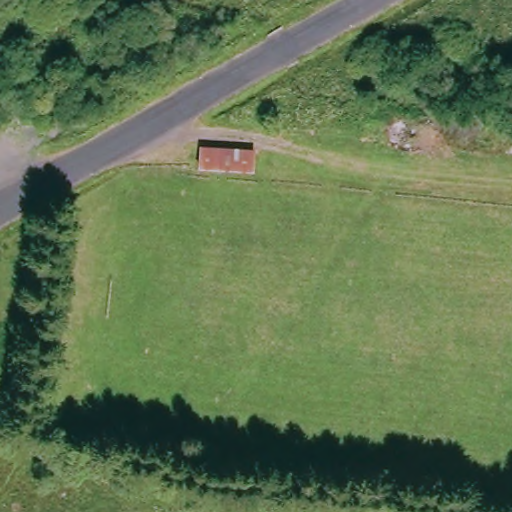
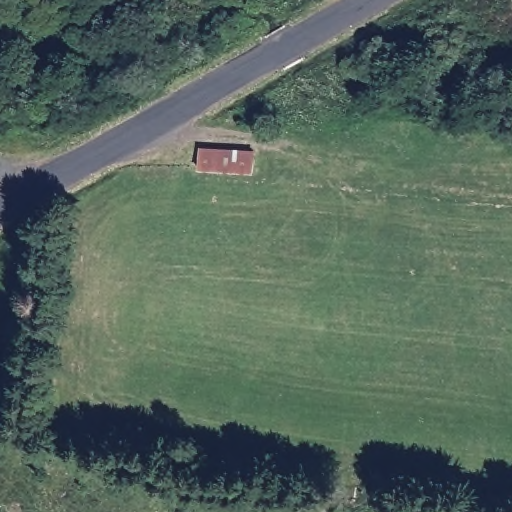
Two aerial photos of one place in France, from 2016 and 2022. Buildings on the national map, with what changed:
unchanged [(255,150),(257,174),(201,175),(201,152),(255,150)]

